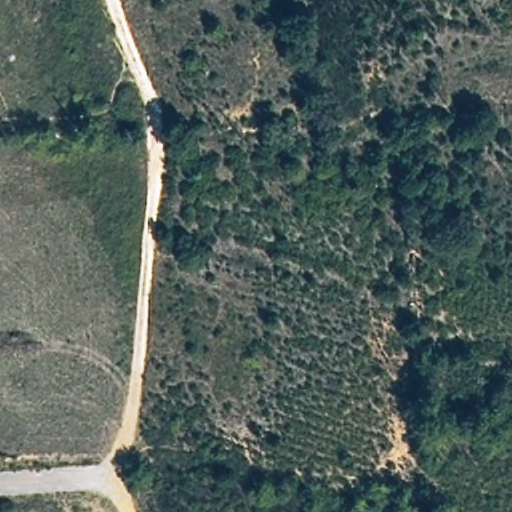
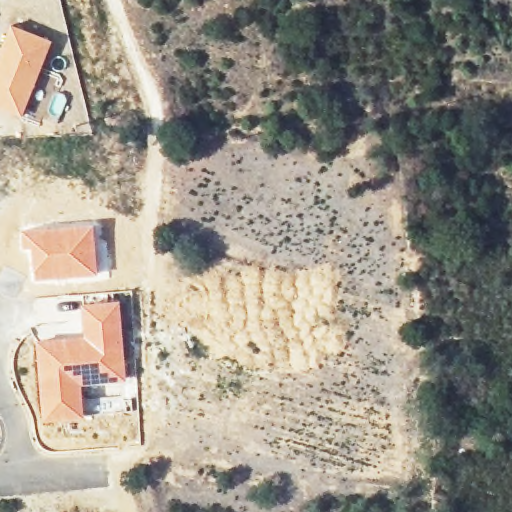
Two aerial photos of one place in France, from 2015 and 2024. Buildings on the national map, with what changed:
new [(9,37),(46,51),(25,107),(0,98),(0,60),(9,37)]
new [(92,223),(97,275),(32,281),(28,249),(20,250),(18,228),(92,223)]
new [(81,331),(78,303),(118,299),(125,380),(81,385),(82,419),(38,423),(33,338),(81,331)]

